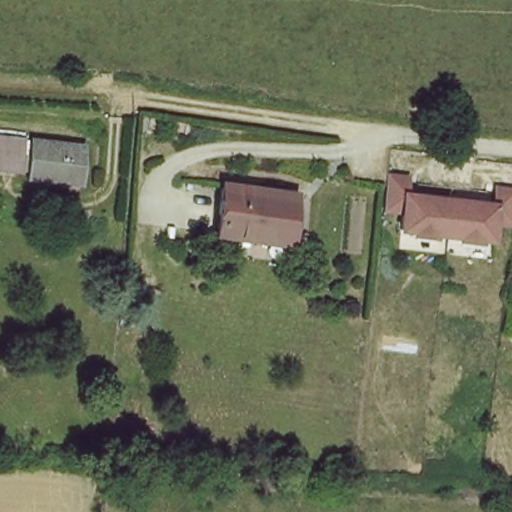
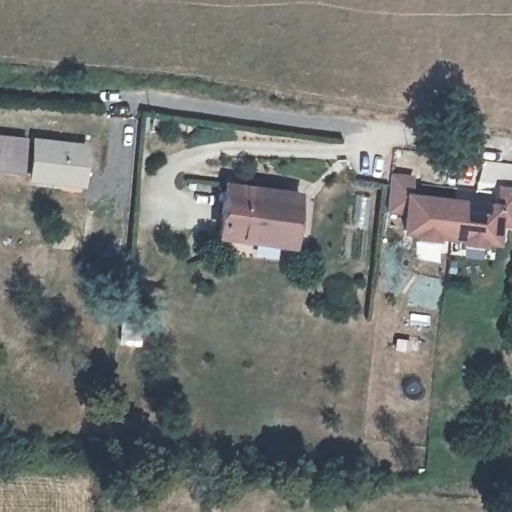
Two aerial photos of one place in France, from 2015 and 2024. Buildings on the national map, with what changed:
unchanged [(20,170),(0,168),(0,136),(23,138),(20,170)]
unchanged [(83,186),(62,184),(32,181),(37,140),(66,144),(88,146),(83,186)]
unchanged [(406,184),(405,200),(454,205),(451,240),(436,239),(435,242),(415,240),(415,237),(401,235),(403,217),(382,215),(383,201),(384,181),(406,184)]
unchanged [(297,190),(290,242),(217,236),(224,184),(297,190)]
unchanged [(498,209),(500,193),(512,194),(512,227),(498,226),(497,245),(483,243),(483,247),(462,245),(463,241),(451,240),(454,205),(498,209)]

